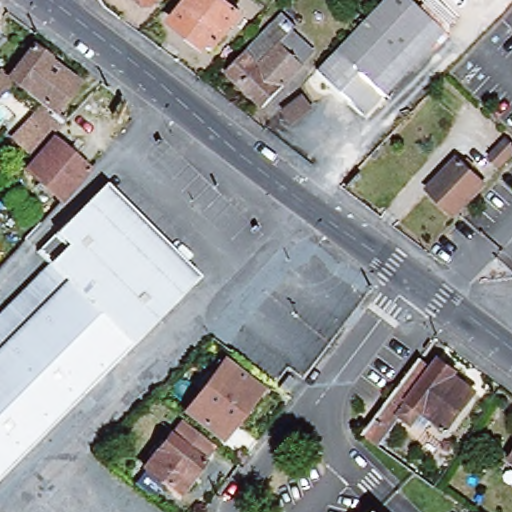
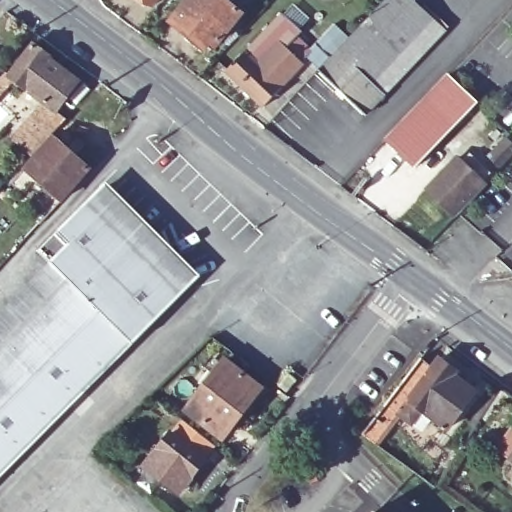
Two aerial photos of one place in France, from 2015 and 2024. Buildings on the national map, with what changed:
unchanged [(154,6),(147,0),(159,0),(154,6)]
unchanged [(212,50),(207,47),(202,52),(186,39),(189,33),(174,21),(190,0),(225,0),(242,12),(212,50)]
unchanged [(385,0),(413,0),(434,19),(372,85),(335,52),(385,0)]
unchanged [(434,19),(447,32),(385,97),(372,85),(434,19)]
unchanged [(263,108),(225,71),(277,20),(282,24),(278,29),(279,31),(271,40),(278,47),(281,43),(284,47),(294,37),(311,52),(301,62),(304,65),(263,108)]
unchanged [(46,103),(14,78),(0,92),(0,70),(3,67),(10,73),(33,43),(50,56),(49,61),(76,80),(55,106),(67,117),(33,153),(20,141),(14,135),(40,109),(46,103)]
new [(448,71),(479,101),(414,168),(383,139),(448,71)]
unchanged [(26,167),(53,136),(89,168),(61,200),(26,167)]
unchanged [(499,167),(488,156),(506,138),(512,144),(512,153),(499,167)]
unchanged [(454,215),(427,189),(457,157),(463,163),(468,159),(475,166),(471,170),(484,183),(454,215)]
unchanged [(67,279),(50,262),(39,249),(93,192),(123,221),(67,279)]
unchanged [(0,350),(67,279),(123,221),(190,287),(0,479),(0,350)]
unchanged [(0,313),(50,262),(67,279),(0,350),(0,313)]
unchanged [(413,418),(408,424),(398,416),(375,445),(362,435),(420,358),(431,366),(437,359),(453,373),(449,376),(471,392),(443,428),(428,418),(423,425),(413,418)]
unchanged [(257,399),(262,404),(241,430),(235,427),(223,442),(187,414),(226,365),(261,393),(257,399)]
unchanged [(295,384),(288,393),(280,387),(288,379),(295,384)]
unchanged [(215,449),(203,463),(205,465),(179,497),(145,470),(154,459),(149,457),(156,448),(160,451),(170,438),(173,439),(184,425),(215,449)]
unchanged [(509,458),(512,454),(512,461),(509,458)]

